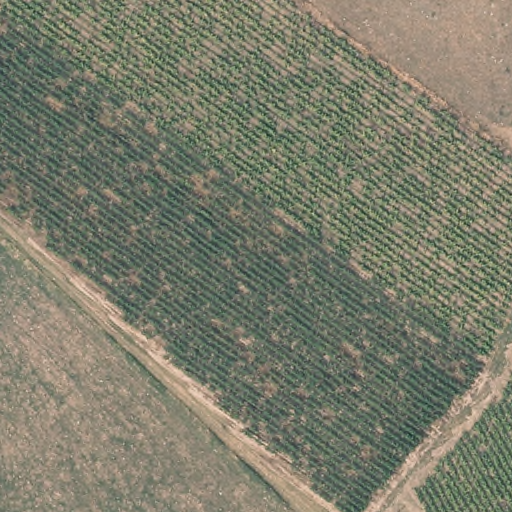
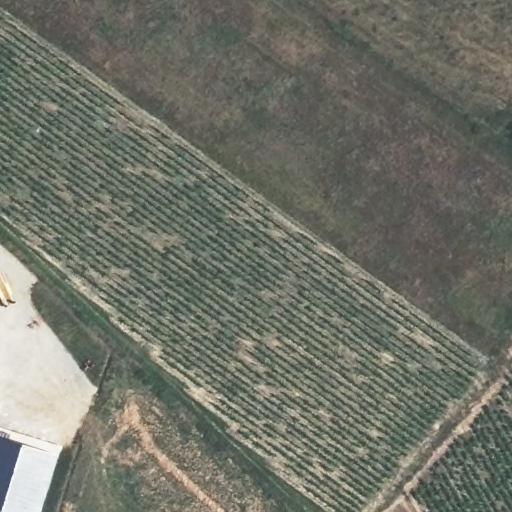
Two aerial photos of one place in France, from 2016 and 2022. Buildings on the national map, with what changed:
new [(58,453),(39,512),(0,512),(0,436),(58,453)]

